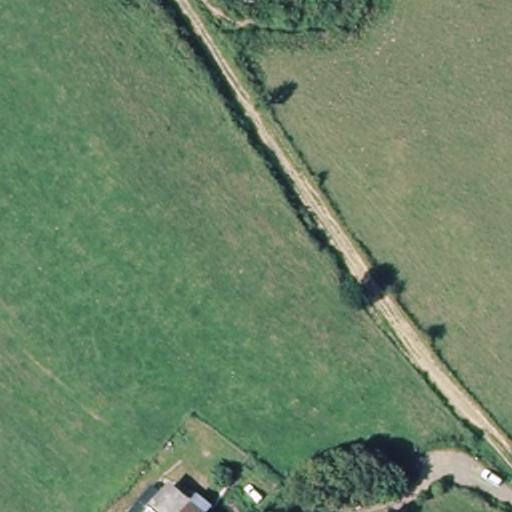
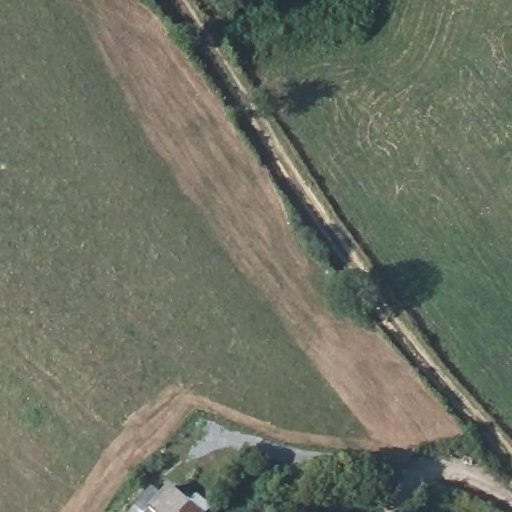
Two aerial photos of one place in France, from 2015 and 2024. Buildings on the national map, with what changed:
unchanged [(176,485),(206,512),(155,512),(152,509),(176,485)]

